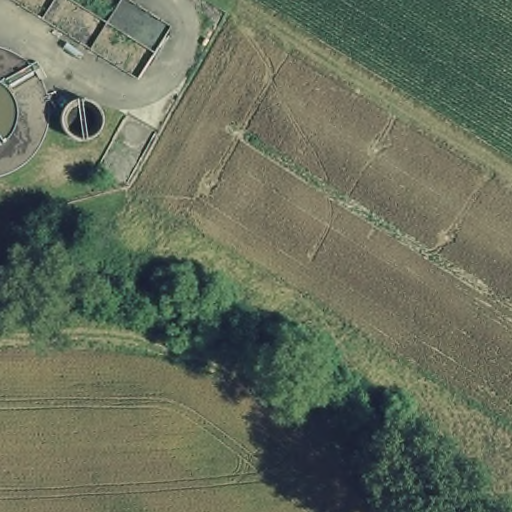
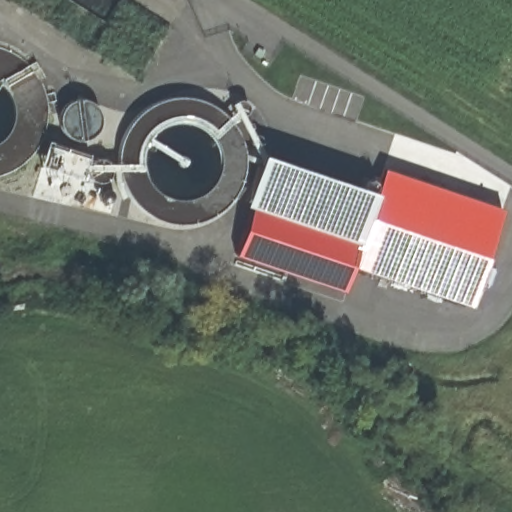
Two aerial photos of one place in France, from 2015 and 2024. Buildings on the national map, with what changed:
new [(251,208),(244,205),(262,155),(376,194),(385,169),(504,209),(471,306),(353,266),(344,292),(236,255),(251,208)]

